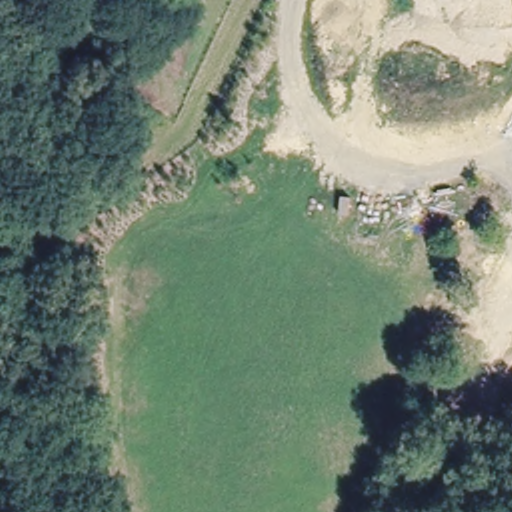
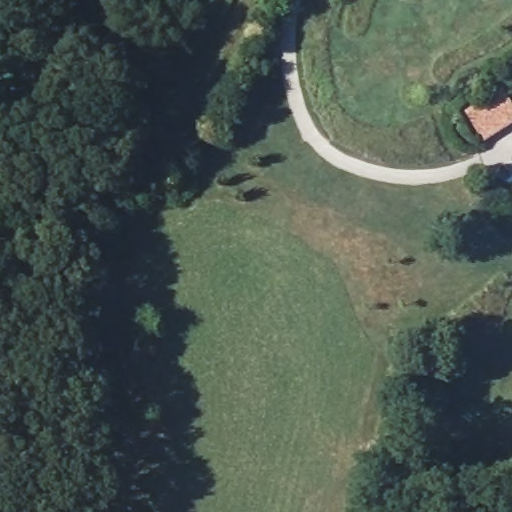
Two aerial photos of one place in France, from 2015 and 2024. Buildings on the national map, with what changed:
new [(483,144),(466,117),(503,90),(512,105),(512,125),(483,144)]

